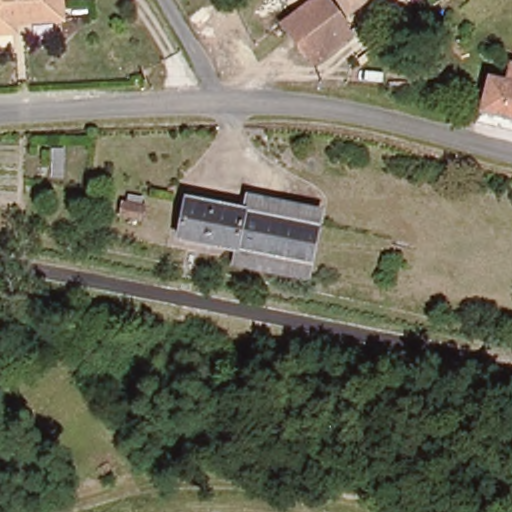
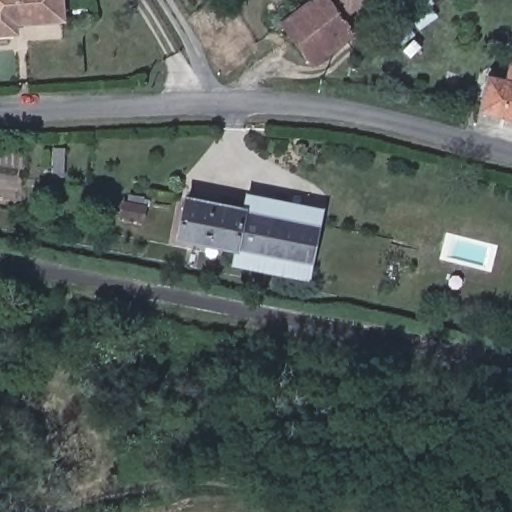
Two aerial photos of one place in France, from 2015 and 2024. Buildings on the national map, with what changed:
unchanged [(12,20),(12,31),(0,30),(0,0),(61,0),(60,22),(12,20)]
unchanged [(314,0),(324,0),(353,35),(314,65),(279,26),(314,0)]
unchanged [(336,0),(365,0),(347,14),(336,0)]
unchanged [(476,118),(478,100),(480,79),(512,82),(512,122),(476,118)]
unchanged [(176,241),(185,199),(315,224),(306,266),(176,241)]
unchanged [(129,209),(126,227),(102,221),(106,204),(129,209)]

